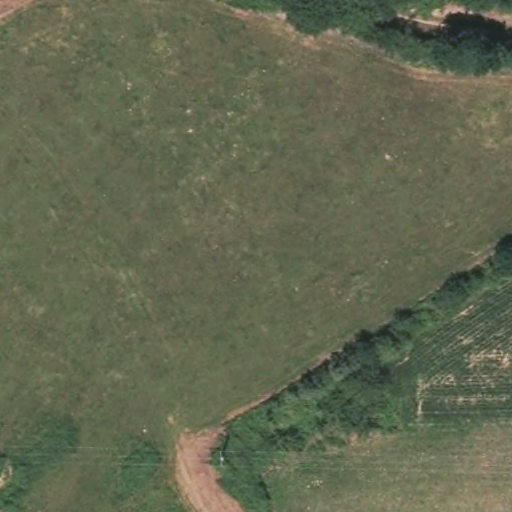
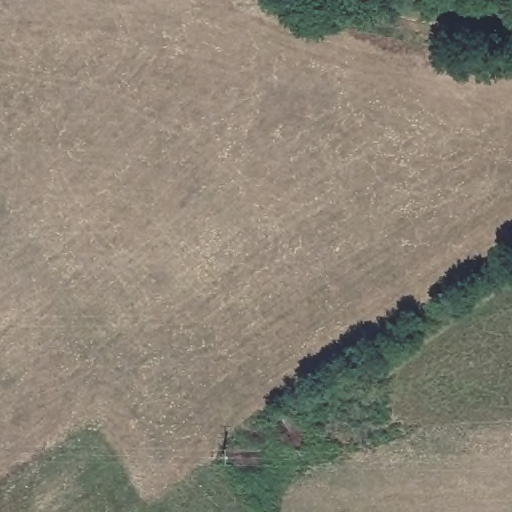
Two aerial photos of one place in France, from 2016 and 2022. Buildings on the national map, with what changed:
[]

